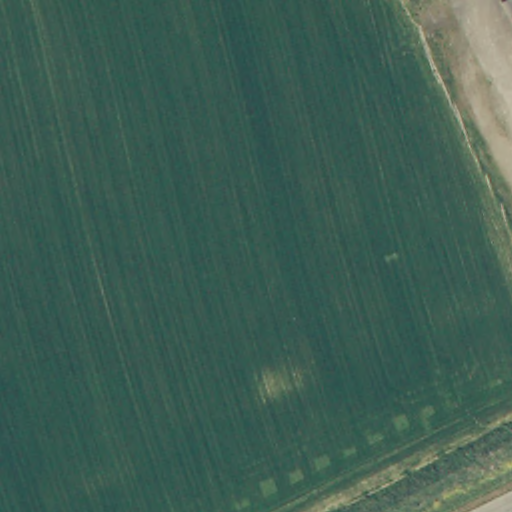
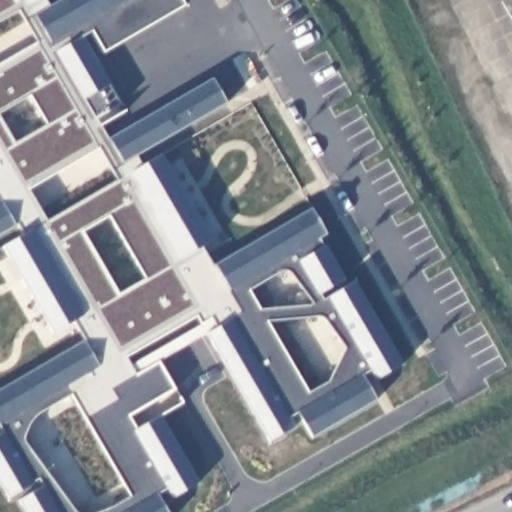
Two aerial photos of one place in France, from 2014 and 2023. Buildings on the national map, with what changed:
new [(60,0),(180,0),(183,5),(103,50),(91,29),(81,34),(121,105),(122,111),(100,125),(110,142),(164,109),(161,104),(210,76),(223,102),(156,144),(160,154),(220,257),(308,207),(407,382),(272,462),(194,319),(182,403),(162,414),(198,481),(164,502),(168,512),(21,512),(0,477),(0,62),(37,40),(18,9),(0,20),(0,0),(46,0),(50,6),(60,0)]
unchanged [(502,0),(512,0),(512,19),(502,0)]

